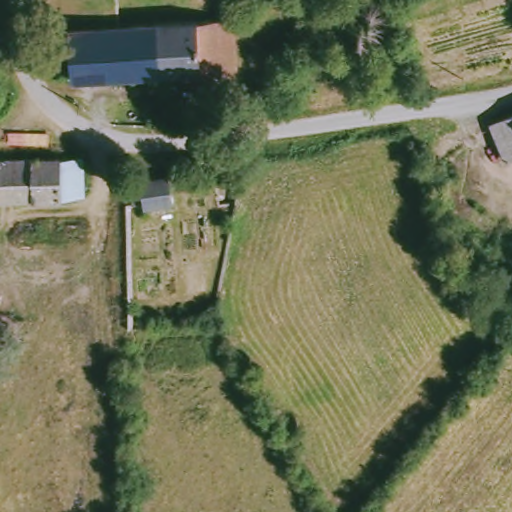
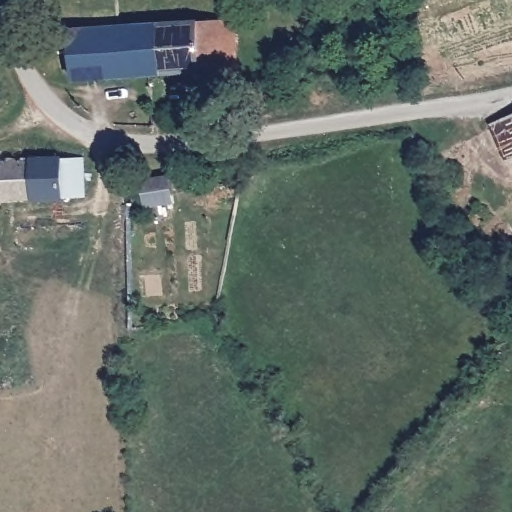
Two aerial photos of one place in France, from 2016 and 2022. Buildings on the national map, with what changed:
unchanged [(221,13),(227,74),(82,86),(80,50),(97,47),(95,25),(221,13)]
unchanged [(510,166),(492,128),(512,119),(512,165),(510,166)]
unchanged [(61,163),(102,162),(102,204),(60,205),(61,163)]
unchanged [(0,205),(0,165),(61,163),(60,205),(0,205)]
unchanged [(182,192),(181,215),(141,219),(142,203),(152,202),(153,190),(167,187),(182,192)]

